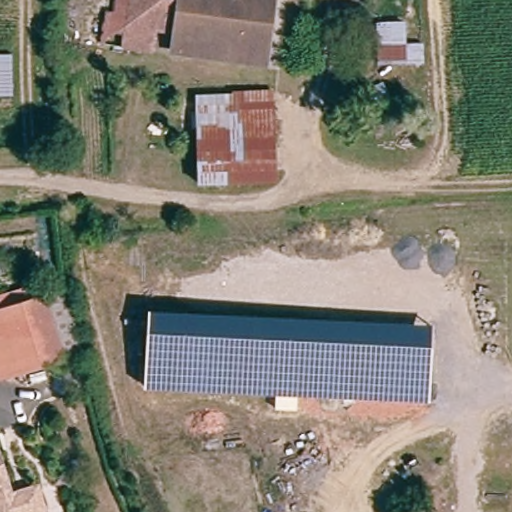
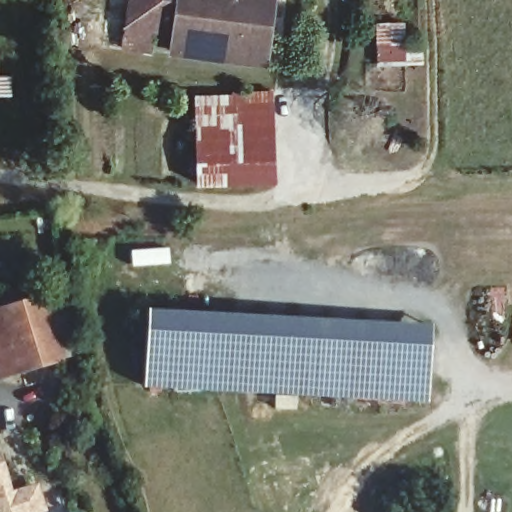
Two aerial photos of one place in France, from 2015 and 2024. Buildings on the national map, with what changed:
unchanged [(259,61),(161,52),(164,33),(139,31),(135,52),(95,49),(100,0),(265,0),(259,61)]
unchanged [(407,20),(409,43),(426,43),(426,70),(375,69),(375,24),(407,20)]
unchanged [(14,100),(0,99),(0,55),(14,55),(14,100)]
unchanged [(230,100),(230,97),(262,95),(267,94),(273,181),(272,181),(195,186),(189,103),(230,100)]
unchanged [(75,355),(1,379),(0,376),(0,321),(10,317),(7,309),(56,291),(75,355)]
unchanged [(149,306),(433,325),(428,401),(299,395),(297,410),(276,410),(276,395),(145,387),(149,306)]
unchanged [(38,485),(46,508),(35,512),(0,512),(0,456),(13,494),(38,485)]

